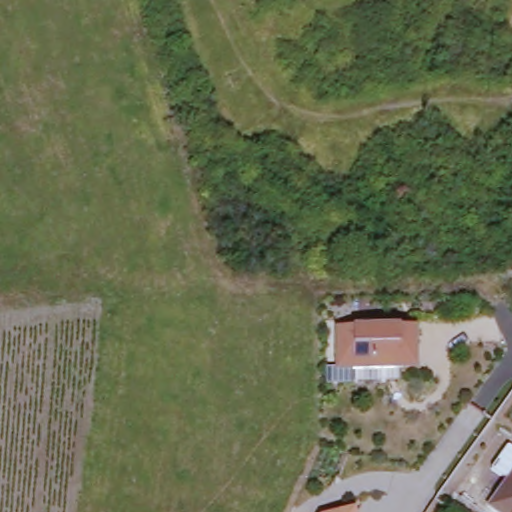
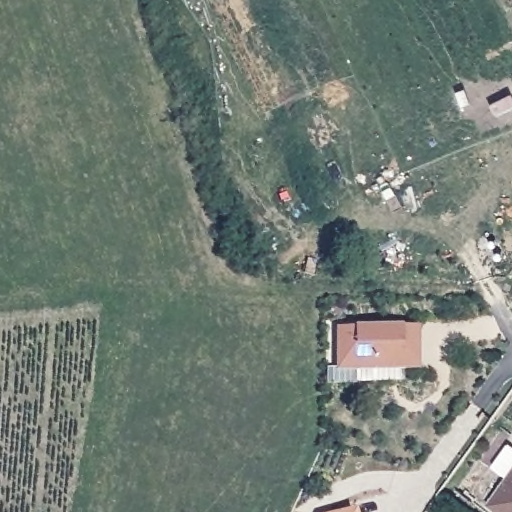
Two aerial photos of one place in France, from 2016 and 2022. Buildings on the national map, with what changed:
unchanged [(331,398),(327,398),(327,382),(335,382),(337,382),(337,366),(337,327),(345,327),(415,327),(415,368),(400,368),(400,382),(355,382),(355,398),(331,398)]
unchanged [(508,480),(492,468),(508,446),(512,448),(512,512),(499,512),(490,506),(508,480)]
unchanged [(355,512),(343,512),(354,510),(355,512)]

